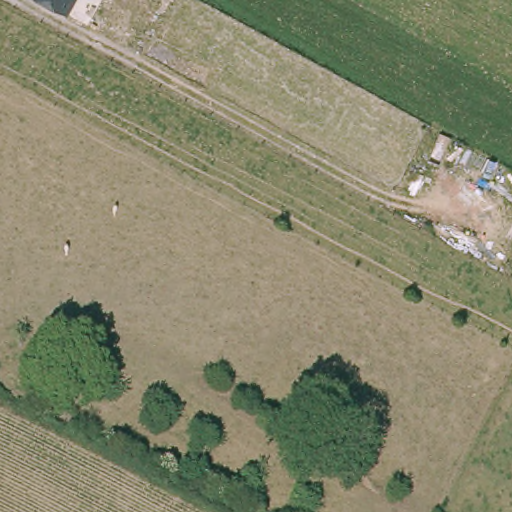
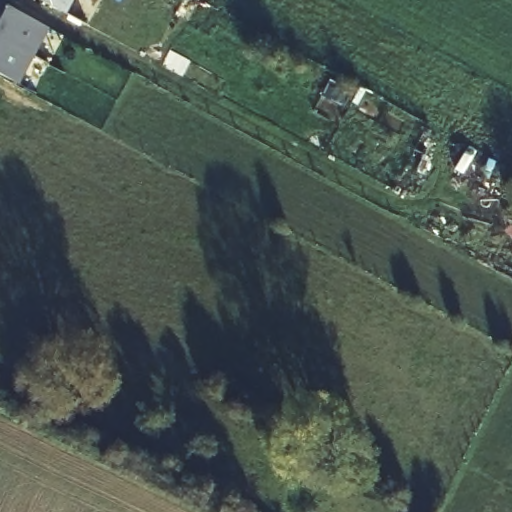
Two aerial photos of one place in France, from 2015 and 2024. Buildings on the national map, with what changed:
unchanged [(58,20),(20,0),(69,0),(58,20)]
new [(50,27),(21,84),(0,73),(0,2),(50,27)]

